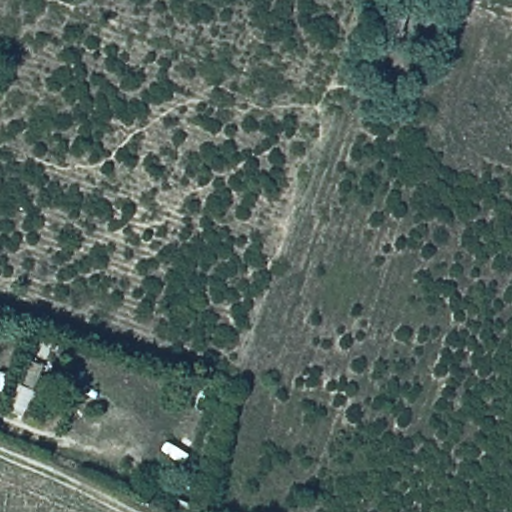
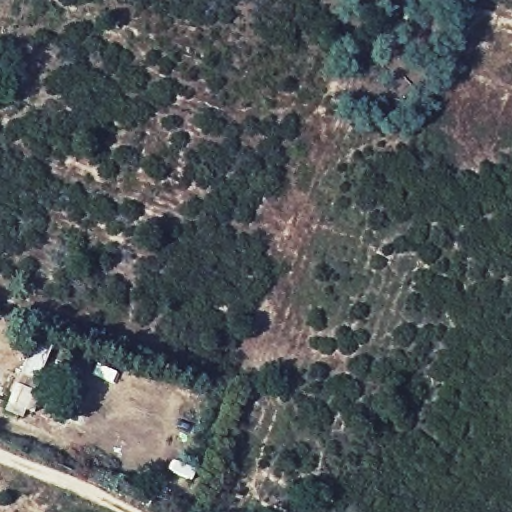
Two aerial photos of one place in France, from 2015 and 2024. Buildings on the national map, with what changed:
unchanged [(47,369),(30,413),(7,402),(26,359),(47,369)]

